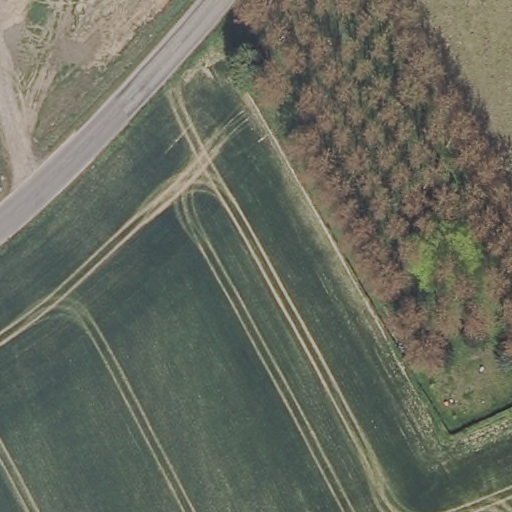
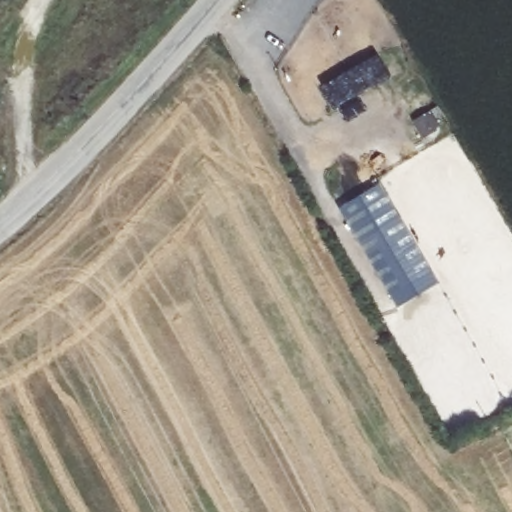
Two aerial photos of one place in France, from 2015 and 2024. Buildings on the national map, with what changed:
new [(428,136),(419,120),(436,110),(445,125),(428,136)]
new [(438,282),(398,306),(340,207),(381,183),(438,282)]

